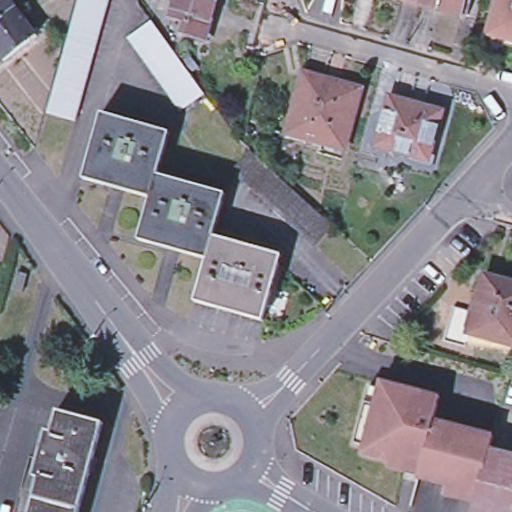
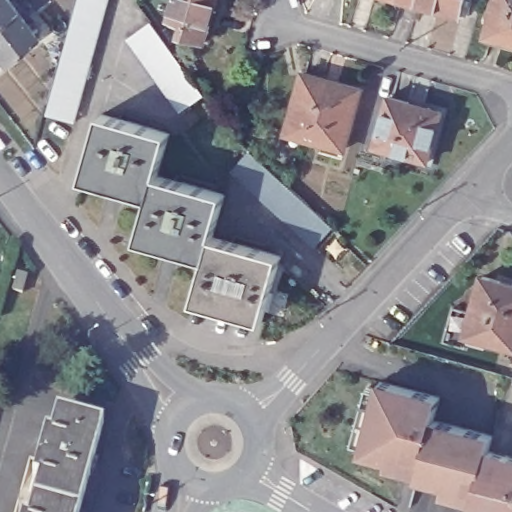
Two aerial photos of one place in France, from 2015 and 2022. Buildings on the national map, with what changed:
unchanged [(0,23),(0,0),(8,0),(16,10),(0,23)]
unchanged [(60,76),(64,61),(68,46),(72,33),(76,19),(80,3),(81,0),(111,0),(109,10),(104,25),(100,39),(97,54),(92,69),(89,83),(85,98),(80,111),(77,126),(47,120),(52,105),(56,91),(60,76)]
unchanged [(174,0),(216,0),(204,40),(165,29),(174,0)]
unchanged [(402,0),(420,0),(419,5),(402,0)]
unchanged [(466,0),(462,17),(419,5),(420,0),(466,0)]
unchanged [(512,0),(512,40),(510,39),(507,46),(486,41),(497,0),(512,0)]
unchanged [(38,39),(5,64),(0,56),(0,23),(16,10),(38,39)]
unchanged [(144,62),(135,51),(127,40),(152,22),(160,33),(169,46),(178,59),(186,69),(195,82),(205,94),(201,96),(180,111),(171,100),(162,87),(153,75),(144,62)]
unchanged [(301,81),(336,91),(337,86),(361,93),(344,153),(285,136),(301,81)]
unchanged [(390,98),(442,113),(427,163),(375,147),(390,98)]
unchanged [(82,180),(102,116),(171,134),(159,176),(157,176),(150,199),(82,180)]
unchanged [(334,228),(315,249),(232,172),(250,151),(334,228)]
unchanged [(157,176),(159,176),(225,195),(213,238),(207,260),(139,241),(150,199),(157,176)]
unchanged [(282,257),(264,323),(195,303),(207,260),(213,238),(282,257)]
unchanged [(485,277),(512,284),(512,345),(470,334),(485,277)]
unchanged [(418,480),(420,470),(362,455),(364,447),(354,445),(369,388),(379,390),(380,383),(440,398),(435,421),(494,437),(490,451),(479,496),(418,480)]
unchanged [(57,412),(105,425),(80,512),(29,512),(57,412)]
unchanged [(512,457),(512,512),(474,512),(479,496),(490,451),(512,457)]

